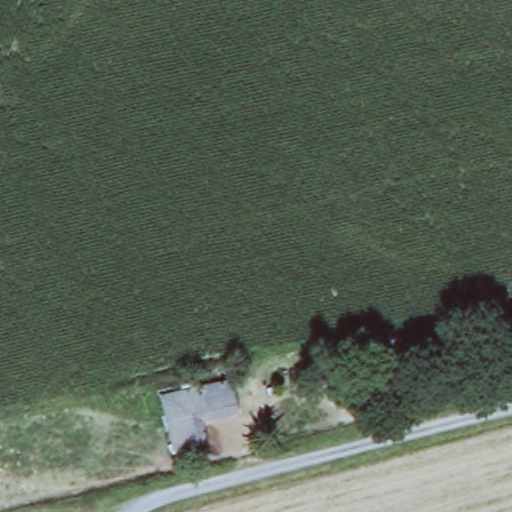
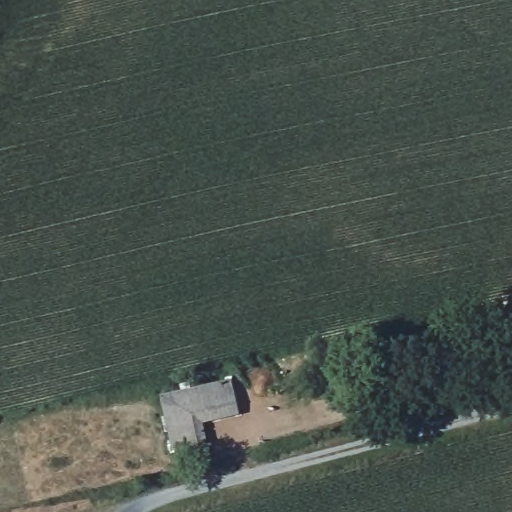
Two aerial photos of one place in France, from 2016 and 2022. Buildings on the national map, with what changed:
unchanged [(238,373),(248,415),(209,423),(214,446),(172,454),(158,395),(238,373)]

